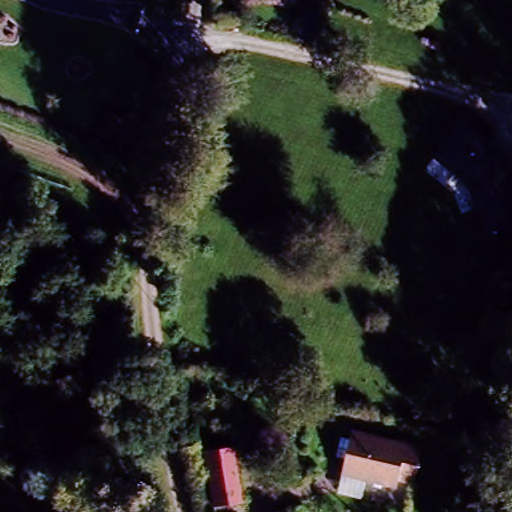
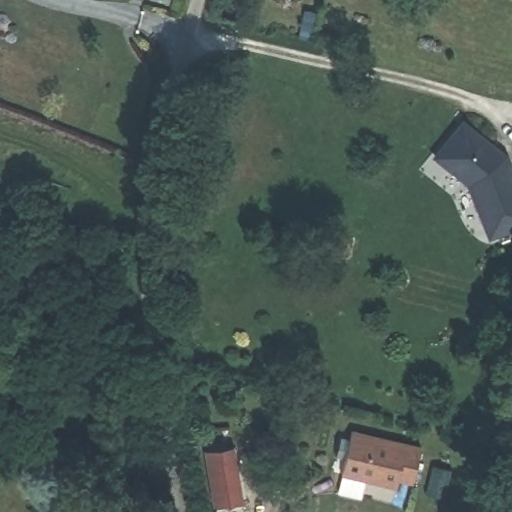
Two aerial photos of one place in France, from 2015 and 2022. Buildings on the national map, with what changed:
demolished [(206,0),(228,0),(226,11),(205,4),(206,0)]
demolished [(281,29),(289,1),(310,7),(303,36),(281,29)]
new [(463,119),(491,144),(489,146),(503,159),(505,158),(512,176),(512,232),(485,241),(465,184),(431,154),(463,119)]
unchanged [(405,476),(404,484),(344,470),(347,455),(337,453),(341,433),(351,435),(353,428),(426,445),(420,479),(405,476)]
unchanged [(210,504),(202,447),(234,442),(241,498),(210,504)]

